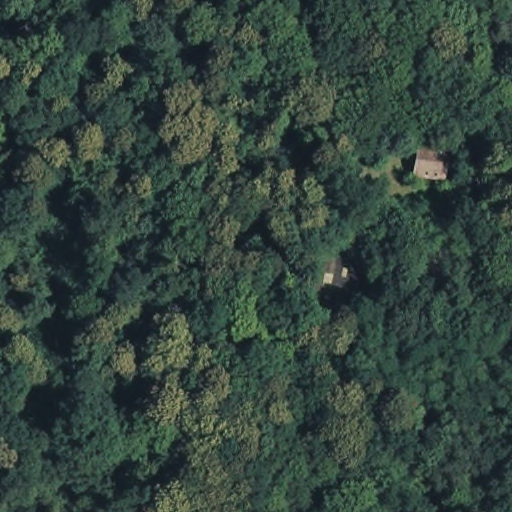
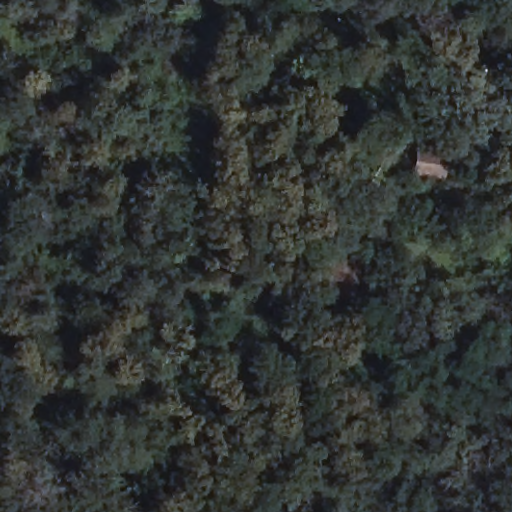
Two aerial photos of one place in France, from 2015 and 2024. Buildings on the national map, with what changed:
unchanged [(440,183),(410,178),(414,151),(444,156),(440,183)]

